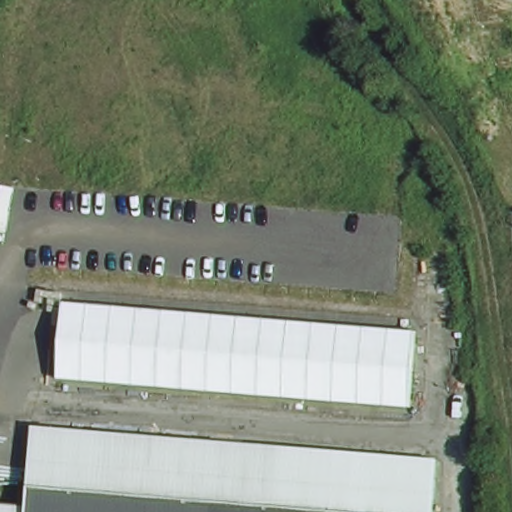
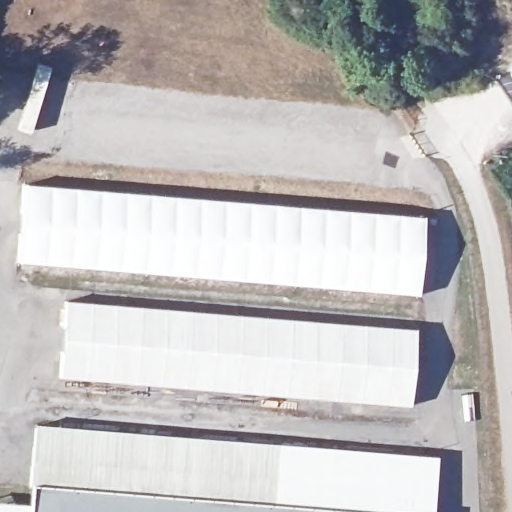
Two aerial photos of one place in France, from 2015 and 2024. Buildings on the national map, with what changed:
new [(22,186),(424,220),(417,297),(16,264),(22,186)]
unchanged [(409,404),(56,375),(64,297),(415,326),(409,404)]
unchanged [(433,512),(266,512),(28,496),(32,424),(436,454),(433,512)]
unchanged [(266,512),(27,512),(28,496),(266,512)]

